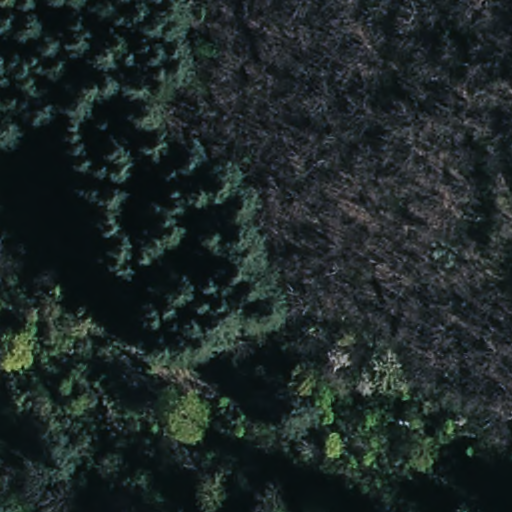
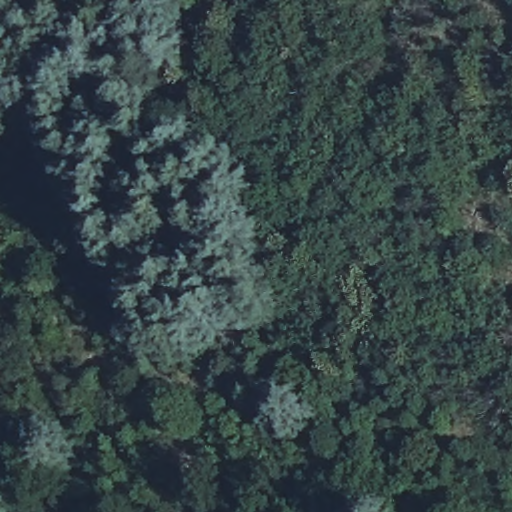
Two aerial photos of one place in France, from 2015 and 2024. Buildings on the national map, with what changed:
unchanged [(259,217),(253,201),(276,194),(282,209),(259,217)]

